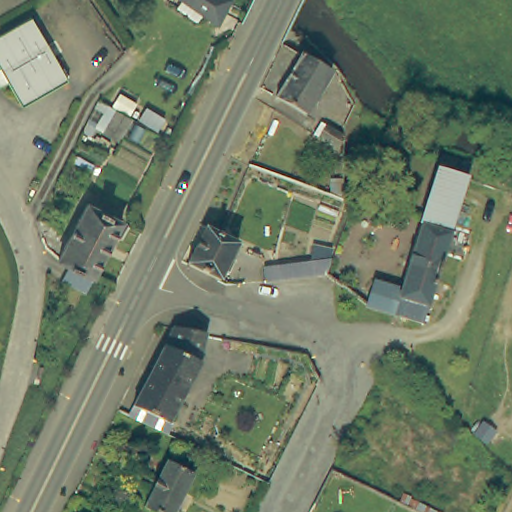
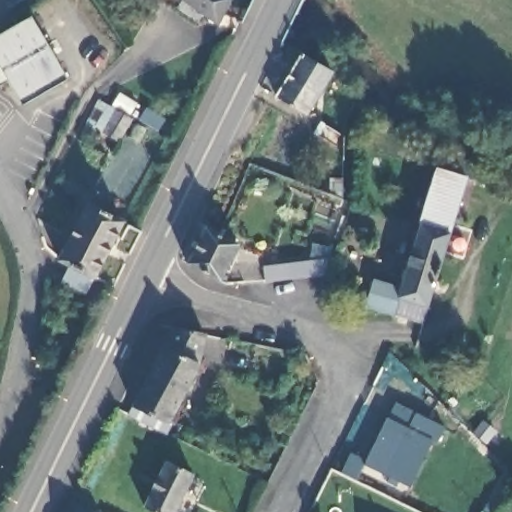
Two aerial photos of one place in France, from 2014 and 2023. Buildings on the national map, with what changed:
unchanged [(187,0),(229,0),(222,16),(187,0)]
unchanged [(21,100),(7,75),(0,79),(0,28),(29,11),(67,74),(21,100)]
unchanged [(335,68),(309,112),(279,94),(305,49),(335,68)]
unchanged [(129,145),(93,126),(93,125),(105,101),(141,122),(129,145)]
unchanged [(342,135),(335,146),(317,135),(324,124),(342,135)]
unchanged [(453,228),(431,300),(423,321),(367,301),(376,273),(399,288),(417,221),(435,162),(471,174),(453,228)]
unchanged [(70,254),(61,250),(89,195),(119,210),(92,264),(84,280),(63,270),(70,254)]
unchanged [(204,224),(237,241),(218,277),(185,260),(204,224)]
unchanged [(260,264),(305,259),(308,242),(326,246),(324,257),(327,257),(323,272),(261,279),(260,264)]
unchanged [(201,350),(202,355),(192,376),(172,418),(174,420),(169,433),(129,414),(171,325),(203,331),(201,350)]
new [(388,417),(409,427),(416,412),(444,426),(437,442),(432,441),(409,487),(364,464),(388,417)]
unchanged [(192,473),(171,512),(158,512),(142,503),(164,459),(192,473)]

